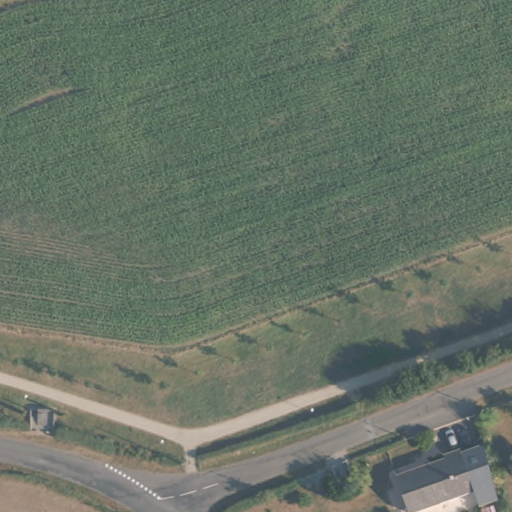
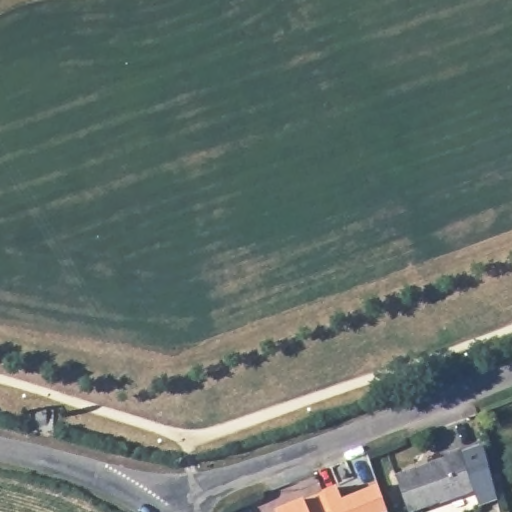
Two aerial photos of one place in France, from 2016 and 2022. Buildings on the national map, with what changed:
unchanged [(458,454),(483,447),(499,498),(479,506),(471,494),(458,454)]
unchanged [(443,461),(442,458),(458,454),(471,494),(420,512),(406,512),(395,479),(443,461)]
new [(275,511),(337,485),(342,499),(377,485),(387,512),(275,512),(275,511)]

